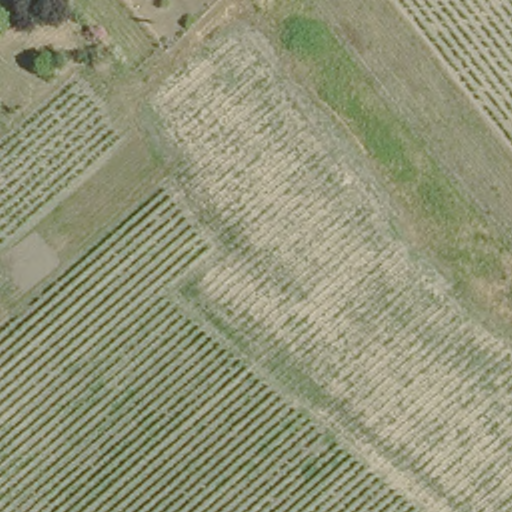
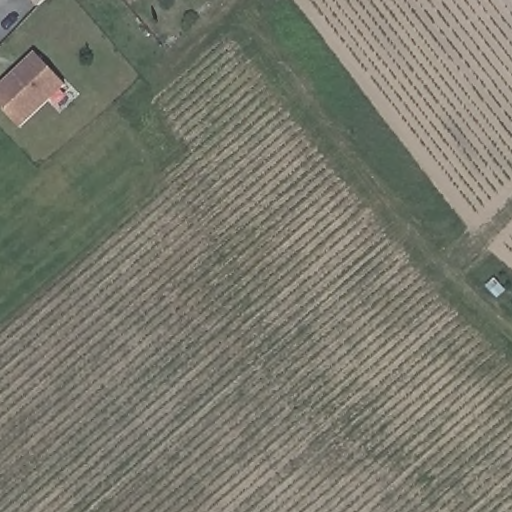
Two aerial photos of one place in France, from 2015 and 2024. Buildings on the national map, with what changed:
new [(38,7),(31,0),(47,0),(38,7)]
new [(20,130),(0,108),(0,85),(36,52),(68,87),(20,130)]

